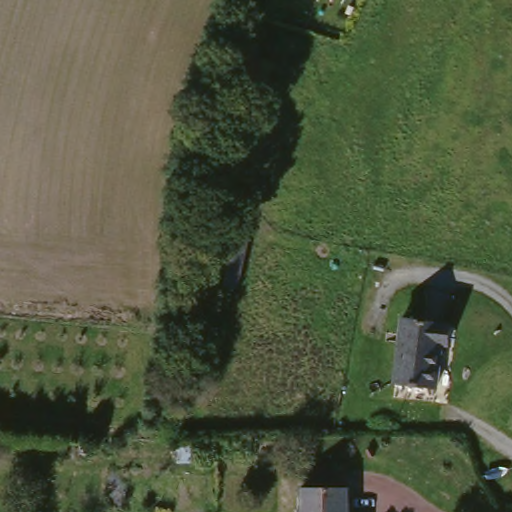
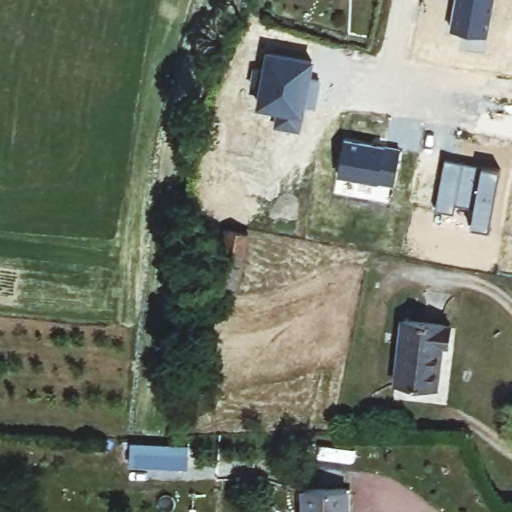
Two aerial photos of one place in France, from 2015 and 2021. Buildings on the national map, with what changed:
new [(493,0),(486,39),(452,33),(457,0),(493,0)]
new [(253,72),(263,74),(266,57),(311,66),(307,82),(318,85),(315,105),(310,105),(308,112),(302,111),(297,136),(274,131),(277,115),(256,110),(260,92),(250,90),(253,72)]
new [(343,144),(399,152),(393,187),(337,178),(343,144)]
new [(445,162),(500,171),(490,232),(472,230),(475,210),(456,207),(455,217),(436,214),(445,162)]
unchanged [(213,281),(225,228),(246,232),(235,286),(213,281)]
unchanged [(391,388),(398,316),(443,321),(441,345),(435,345),(430,392),(391,388)]
unchanged [(298,490),(343,486),(345,512),(300,512),(298,490)]

